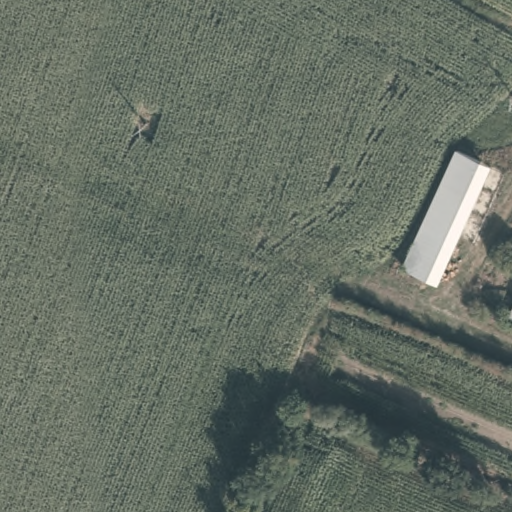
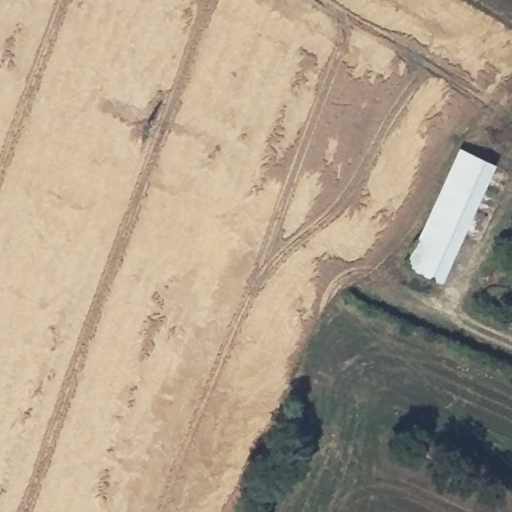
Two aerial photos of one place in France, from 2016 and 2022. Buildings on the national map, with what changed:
unchanged [(465,149),(490,160),(437,277),(413,265),(465,149)]
unchanged [(508,325),(512,318),(512,327),(508,325)]

